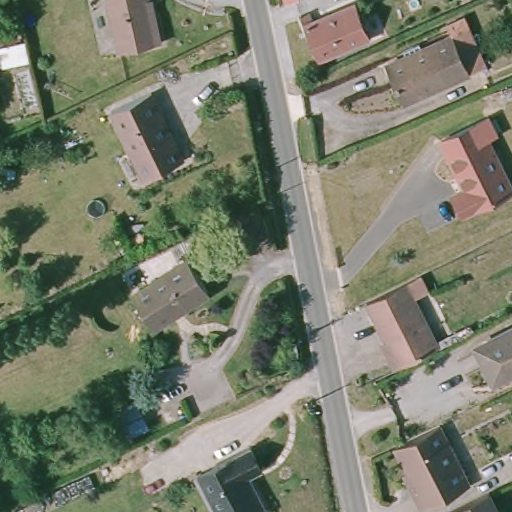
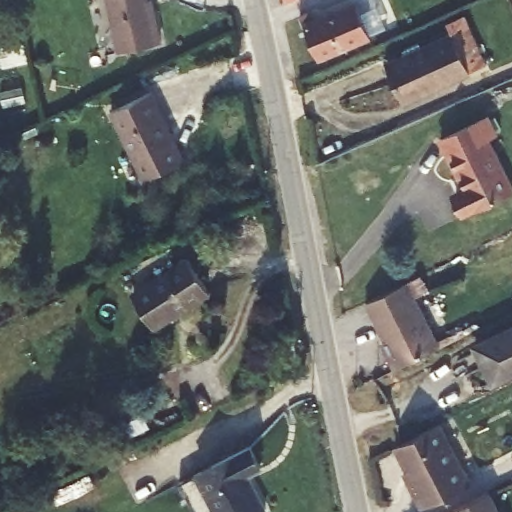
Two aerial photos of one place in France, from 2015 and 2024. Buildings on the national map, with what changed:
unchanged [(152,15),(155,15),(162,47),(121,57),(109,0),(148,0),(152,15)]
unchanged [(323,66),(317,61),(303,21),(313,17),(317,28),(357,12),(370,47),(323,66)]
unchanged [(470,78),(455,40),(450,29),(467,21),(488,70),(470,78)]
unchanged [(470,78),(405,106),(389,69),(455,40),(470,78)]
unchanged [(146,88),(178,156),(140,176),(107,108),(146,88)]
unchanged [(484,116),(492,132),(483,137),(510,192),(462,215),(452,193),(461,189),(436,138),(484,116)]
unchanged [(184,259),(205,293),(154,328),(132,294),(184,259)]
unchanged [(390,355),(393,354),(368,304),(408,284),(423,277),(430,292),(416,299),(441,349),(397,371),(390,355)]
unchanged [(494,382),(477,346),(512,330),(512,374),(494,382)]
unchanged [(439,426),(469,486),(421,509),(406,481),(411,479),(395,448),(439,426)]
unchanged [(247,471),(253,484),(258,482),(270,507),(260,512),(224,512),(201,468),(255,441),(265,463),(247,471)]
unchanged [(498,512),(459,512),(490,496),(498,512)]

